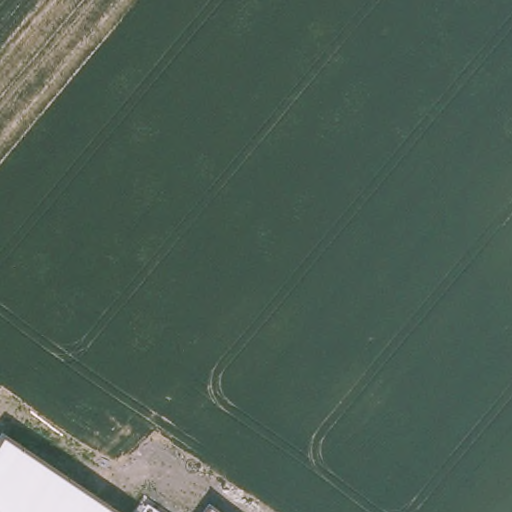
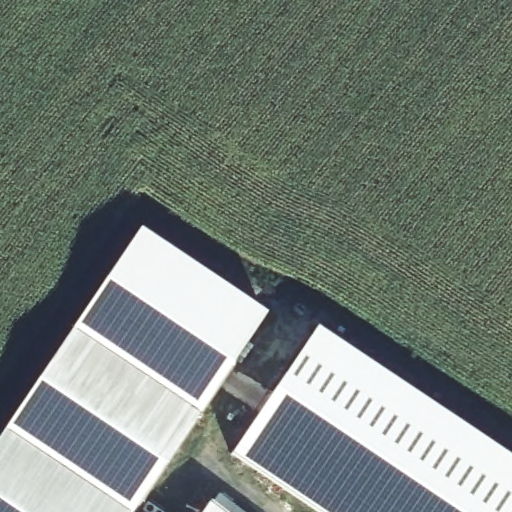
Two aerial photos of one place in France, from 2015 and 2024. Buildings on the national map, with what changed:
new [(264,318),(131,512),(121,512),(3,433),(139,235),(264,318)]
new [(512,452),(512,512),(323,512),(230,450),(316,321),(512,452)]
unchanged [(121,512),(0,512),(0,438),(3,433),(121,512)]
unchanged [(218,512),(204,512),(208,505),(218,512)]

